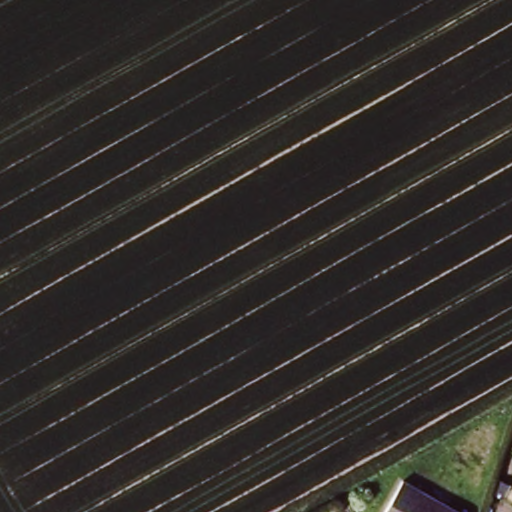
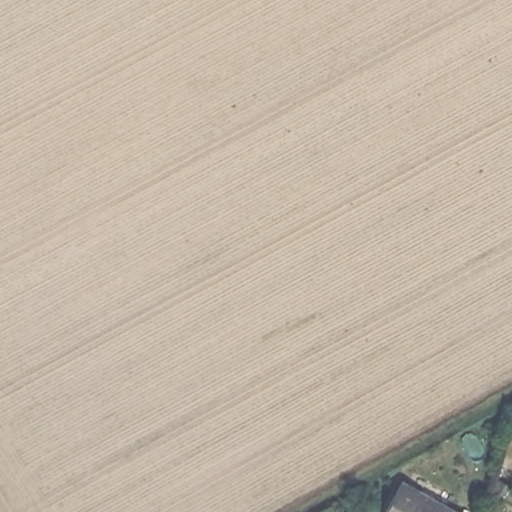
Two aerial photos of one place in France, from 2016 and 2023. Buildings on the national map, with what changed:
unchanged [(460,508),(458,512),(384,512),(400,479),(460,508)]

